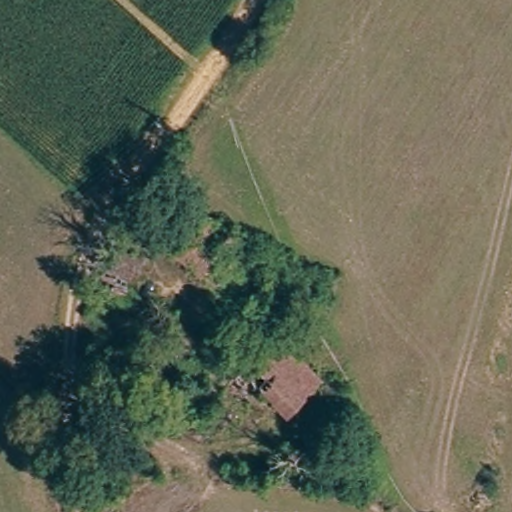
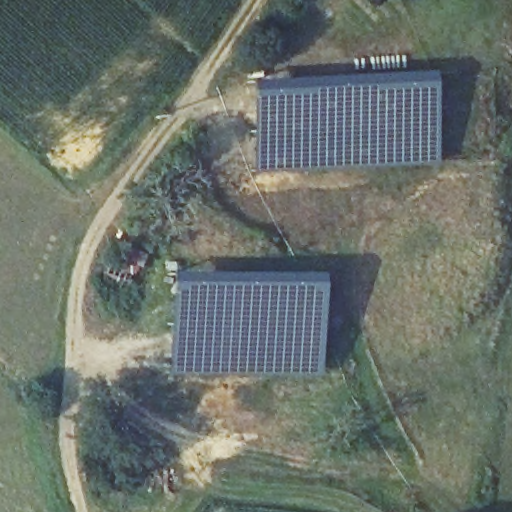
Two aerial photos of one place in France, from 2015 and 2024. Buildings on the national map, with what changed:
new [(252,172),(247,81),(428,74),(434,164),(252,172)]
demolished [(216,286),(166,251),(197,207),(246,243),(216,286)]
new [(316,284),(316,375),(173,374),(174,278),(206,278),(206,284),(220,284),(220,278),(276,278),(276,284),(316,284)]
demolished [(157,319),(171,329),(160,346),(207,382),(197,397),(133,352),(157,319)]
demolished [(178,417),(187,407),(192,415),(261,343),(269,352),(286,337),(322,377),(286,411),(261,382),(204,433),(197,438),(182,422),(178,417)]

